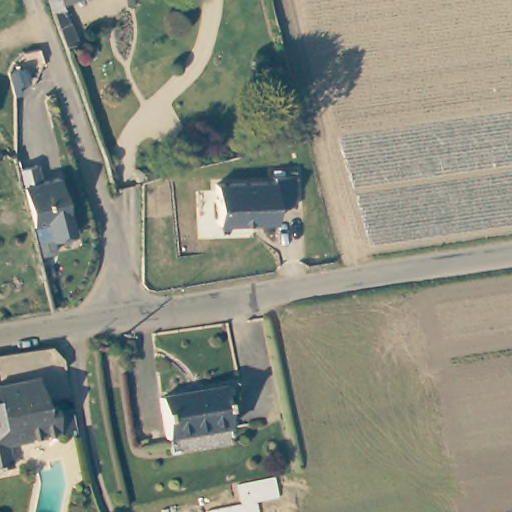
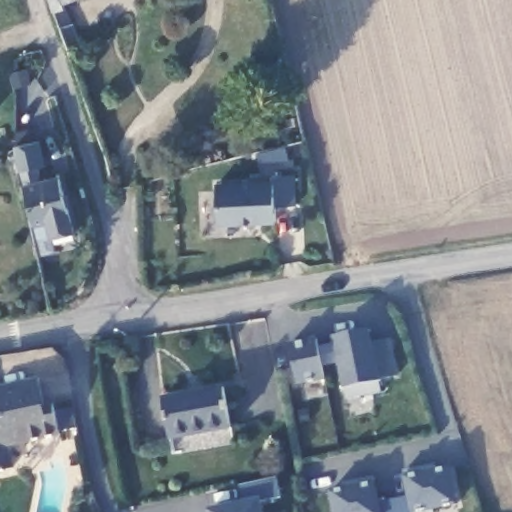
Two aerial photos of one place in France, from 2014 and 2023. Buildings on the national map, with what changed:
unchanged [(68,9),(55,14),(50,0),(69,0),(66,1),(68,9)]
unchanged [(5,175),(3,169),(13,165),(15,172),(5,175)]
unchanged [(35,186),(55,182),(69,237),(46,242),(42,226),(29,229),(15,172),(32,169),(35,186)]
unchanged [(216,184),(271,180),(271,172),(292,171),(292,206),(276,208),(276,225),(216,227),(216,184)]
new [(315,337),(317,345),(330,342),(330,335),(370,328),(372,341),(389,338),(397,382),(377,386),(378,396),(344,403),(336,365),(325,367),(327,382),(297,387),(286,345),(315,337)]
unchanged [(44,409),(50,408),(55,436),(2,446),(7,470),(0,471),(0,386),(37,379),(44,409)]
unchanged [(160,403),(222,390),(232,430),(169,444),(160,403)]
new [(342,488),(340,482),(370,475),(377,502),(405,495),(400,470),(432,462),(435,468),(447,465),(457,508),(439,512),(330,512),(325,491),(342,488)]
unchanged [(281,500),(263,505),(264,512),(203,512),(202,510),(237,503),(237,486),(274,478),(281,500)]

